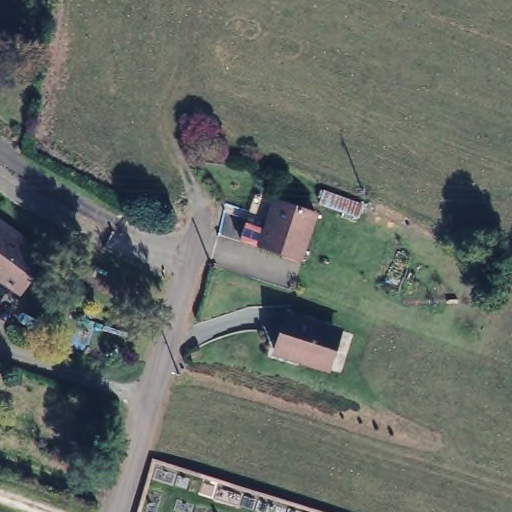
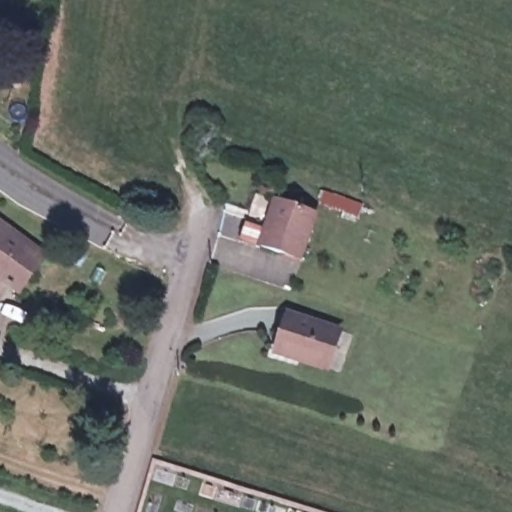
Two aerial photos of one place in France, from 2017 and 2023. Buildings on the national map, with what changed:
unchanged [(317,210),(302,255),(259,240),(275,195),(317,210)]
unchanged [(40,256),(16,290),(0,279),(0,229),(40,256)]
unchanged [(331,330),(317,367),(270,352),(284,313),(331,330)]

